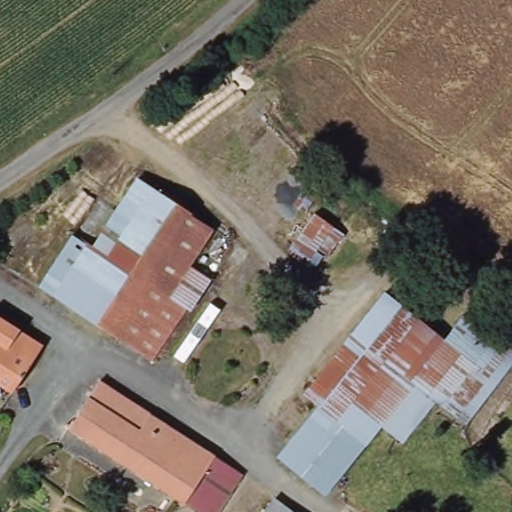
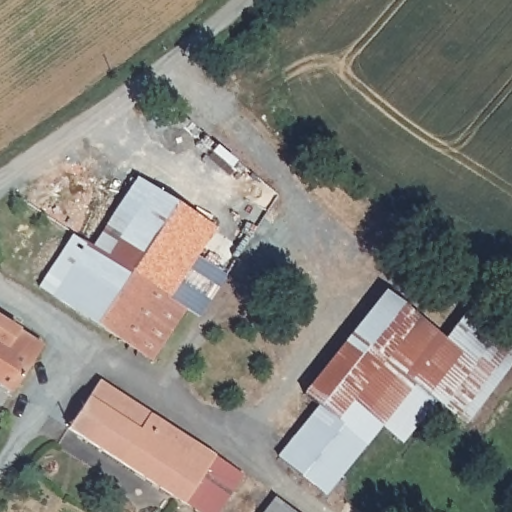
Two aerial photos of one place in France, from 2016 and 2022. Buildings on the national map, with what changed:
unchanged [(86,221),(89,223),(103,202),(125,170),(143,183),(166,196),(125,260),(156,282),(121,338),(44,290),(75,239),(86,221)]
unchanged [(355,207),(316,264),(294,248),(334,192),(355,207)]
unchanged [(220,230),(197,267),(214,280),(195,312),(192,309),(156,362),(121,338),(156,282),(125,260),(166,196),(167,196),(220,230)]
unchanged [(444,336),(463,312),(489,336),(493,333),(512,348),(512,360),(466,419),(437,397),(402,438),(383,423),(368,441),(316,398),(304,389),(384,287),(444,336)]
unchanged [(12,396),(0,387),(0,321),(42,348),(12,396)]
unchanged [(95,378),(241,473),(215,512),(201,512),(66,424),(95,378)]
unchanged [(368,441),(325,497),(273,458),(316,398),(368,441)]
unchanged [(278,497),(296,512),(266,512),(278,497)]

